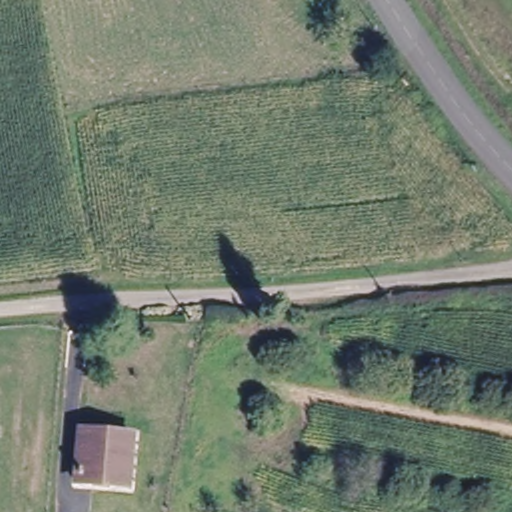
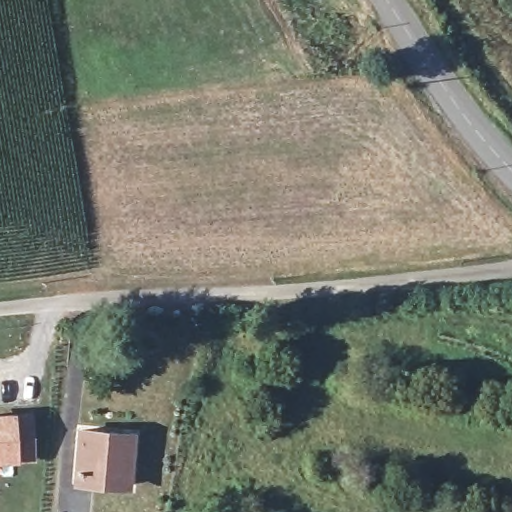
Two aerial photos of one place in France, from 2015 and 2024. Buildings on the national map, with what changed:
new [(16,411),(32,411),(35,458),(18,460),(0,462),(0,412),(16,411)]
unchanged [(131,491),(69,485),(74,427),(134,431),(131,491)]

